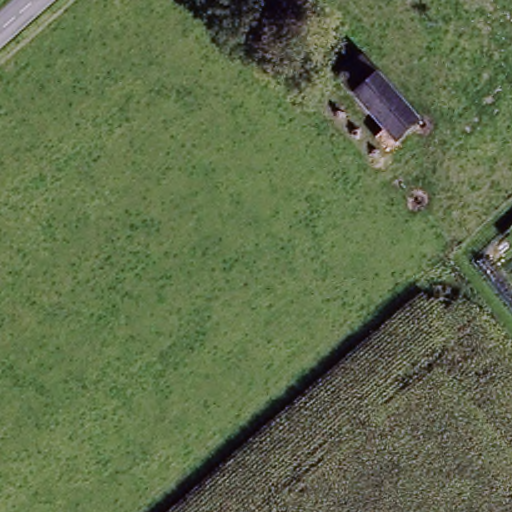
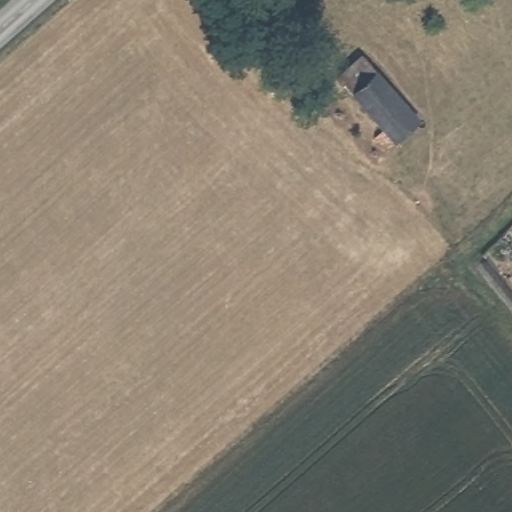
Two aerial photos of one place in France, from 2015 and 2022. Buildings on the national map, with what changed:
unchanged [(393,142),(335,77),(361,54),(420,120),(393,142)]

